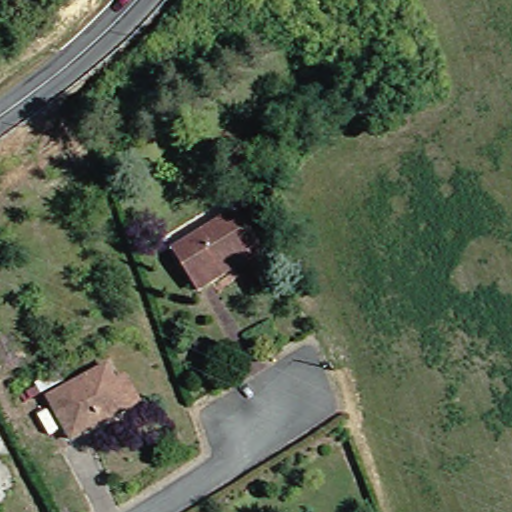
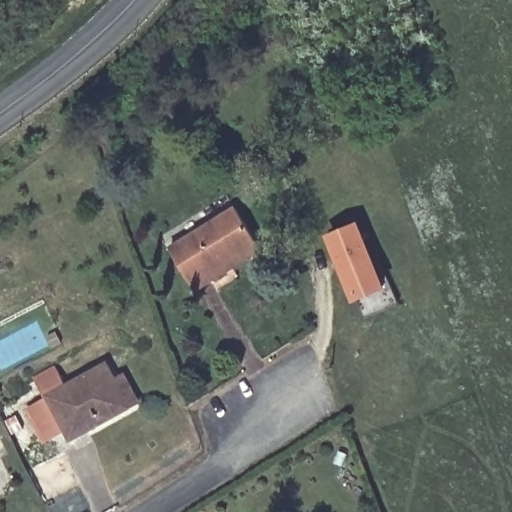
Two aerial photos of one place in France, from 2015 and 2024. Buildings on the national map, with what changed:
unchanged [(253,252),(193,293),(165,254),(226,212),(253,252)]
new [(357,225),(384,288),(355,299),(329,237),(357,225)]
unchanged [(41,402),(98,370),(108,386),(117,380),(133,408),(123,414),(67,447),(41,402)]

